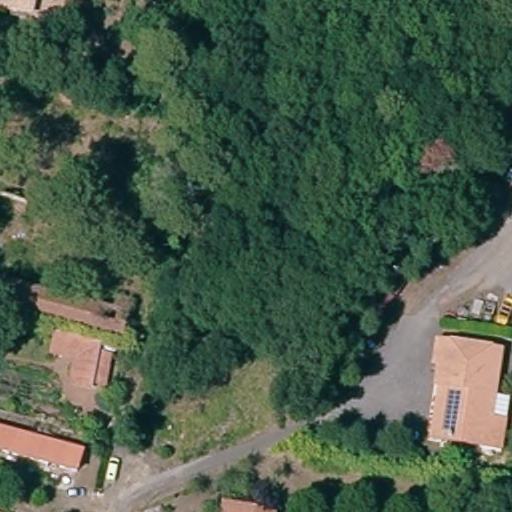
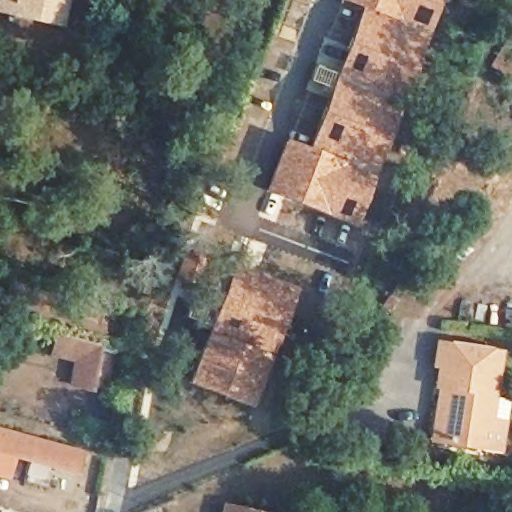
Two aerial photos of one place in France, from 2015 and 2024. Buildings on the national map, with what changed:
unchanged [(0,11),(0,0),(55,0),(50,22),(0,11)]
new [(306,145),(327,90),(307,82),(315,64),(334,71),(358,7),(336,0),(444,0),(437,17),(414,78),(400,109),(356,224),(324,214),(264,191),(283,137),(306,145)]
demolished [(159,198),(174,201),(163,245),(153,242),(148,260),(91,246),(96,231),(80,227),(89,182),(159,198)]
unchanged [(0,316),(0,204),(26,211),(6,287),(111,315),(114,303),(130,307),(119,347),(0,316)]
new [(185,282),(177,280),(188,246),(205,249),(203,254),(213,257),(206,282),(191,278),(185,282)]
new [(232,262),(298,287),(252,408),(186,382),(232,262)]
unchanged [(123,350),(132,317),(156,323),(146,358),(123,350)]
unchanged [(91,394),(90,399),(66,394),(71,362),(62,360),(60,366),(47,362),(52,338),(100,351),(115,355),(114,362),(110,361),(104,397),(91,394)]
unchanged [(497,457),(480,454),(438,448),(430,447),(437,395),(435,394),(437,373),(433,372),(435,353),(497,362),(487,430),(500,432),(497,457)]
unchanged [(0,455),(0,433),(79,455),(74,475),(0,455)]
unchanged [(484,512),(458,512),(464,492),(488,498),(484,512)]

